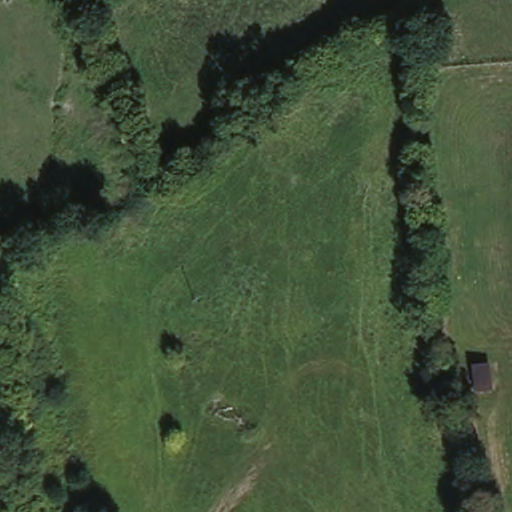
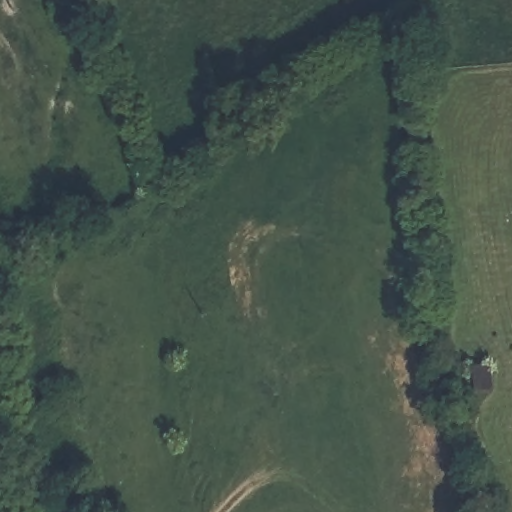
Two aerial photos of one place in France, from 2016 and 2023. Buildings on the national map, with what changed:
unchanged [(493,390),(470,394),(468,363),(493,360),(493,390)]

